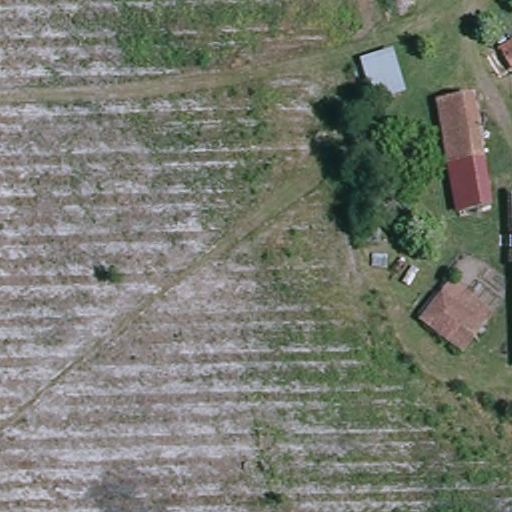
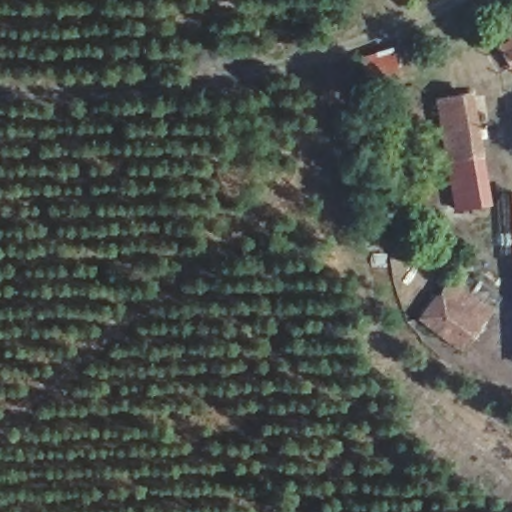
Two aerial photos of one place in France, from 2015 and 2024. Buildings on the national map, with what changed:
unchanged [(512,40),(512,70),(498,49),(512,40)]
unchanged [(406,93),(373,101),(360,60),(394,50),(406,93)]
unchanged [(455,134),(454,96),(483,95),(486,132),(455,134)]
unchanged [(486,132),(487,153),(449,157),(442,158),(440,97),(454,96),(455,134),(486,132)]
unchanged [(487,153),(493,207),(453,212),(449,157),(487,153)]
unchanged [(512,194),(512,289),(506,195),(512,194)]
unchanged [(491,316),(459,355),(420,322),(451,284),(491,316)]

